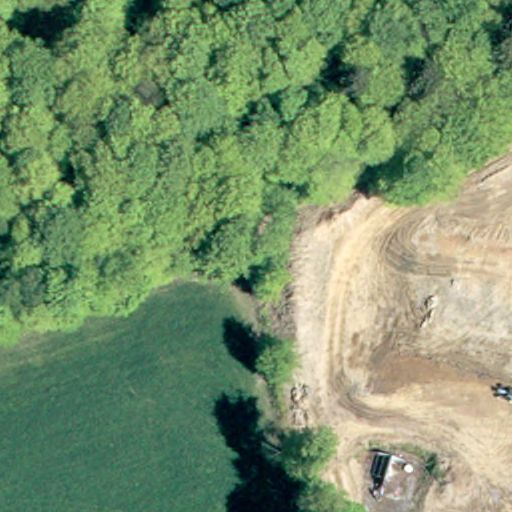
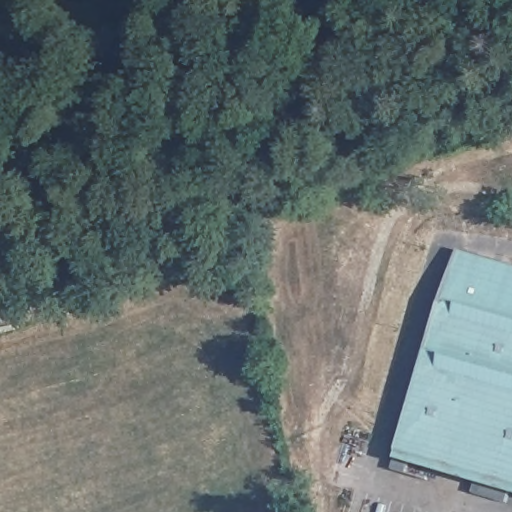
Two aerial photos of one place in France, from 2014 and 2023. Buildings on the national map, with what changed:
demolished [(511,198),(509,207),(510,216),(512,225),(512,345),(412,321),(439,210),(483,220),(489,211),(494,200),(497,189),(497,177),(496,167),(512,162),(512,195),(511,198)]
new [(511,492),(507,502),(474,492),(476,482),(410,463),(407,471),(392,467),(395,459),(442,300),(458,249),(512,265),(512,493),(511,492)]

